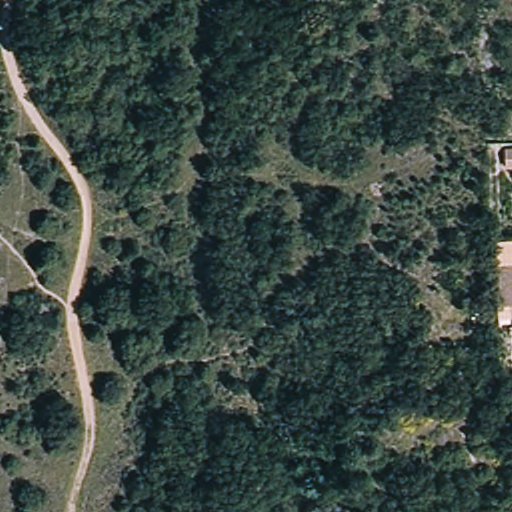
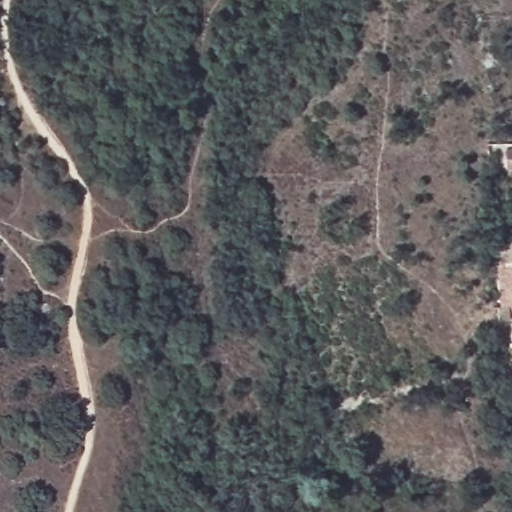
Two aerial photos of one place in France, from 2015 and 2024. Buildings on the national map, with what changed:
unchanged [(509,319),(508,306),(501,306),(496,241),(512,240),(512,318),(509,319)]

